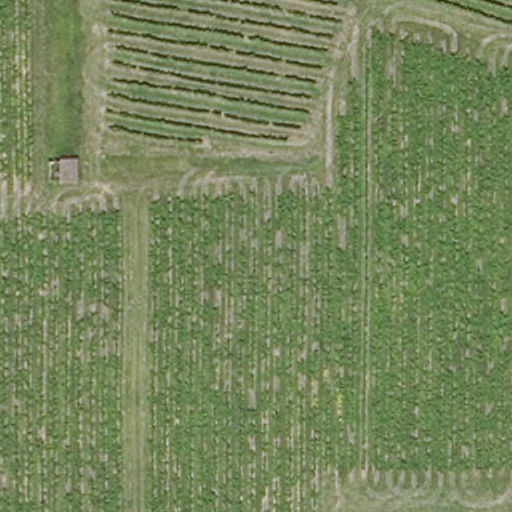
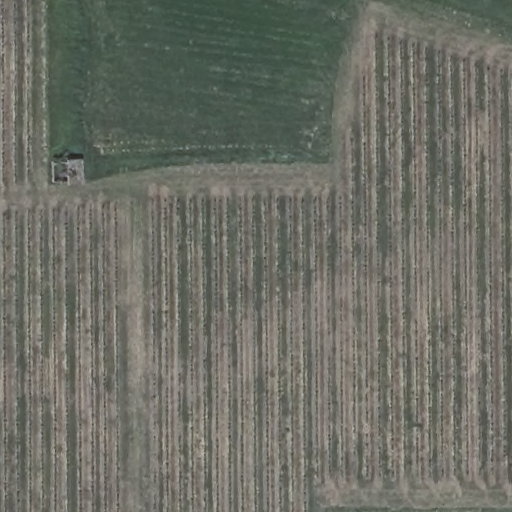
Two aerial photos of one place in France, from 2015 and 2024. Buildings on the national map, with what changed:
unchanged [(50,181),(50,158),(78,159),(80,182),(50,181)]

